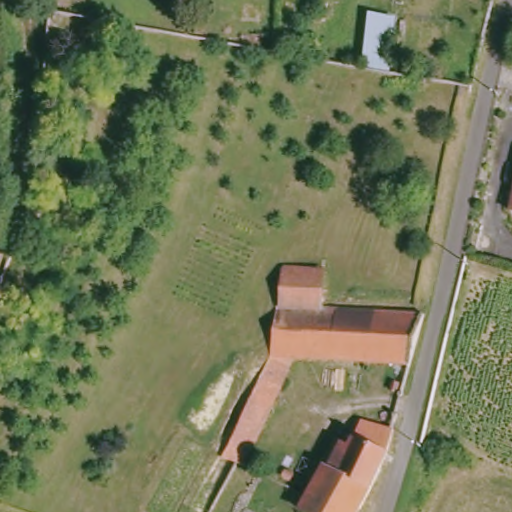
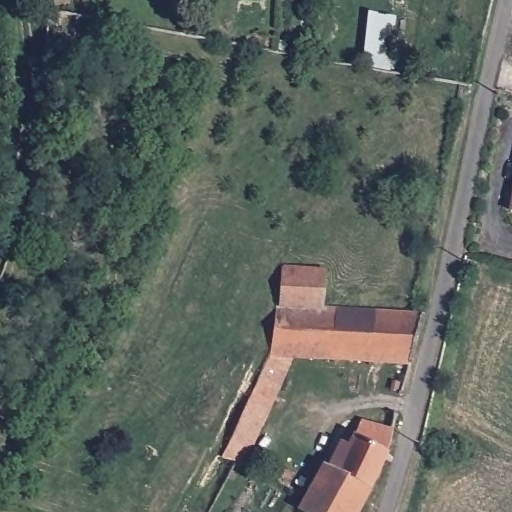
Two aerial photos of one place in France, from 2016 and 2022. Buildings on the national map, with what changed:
unchanged [(368,10),(388,14),(382,65),(364,61),(368,10)]
unchanged [(512,175),(512,207),(506,206),(512,175)]
unchanged [(411,365),(293,356),(268,412),(257,436),(243,465),(221,456),(270,355),(276,307),(281,307),(285,268),(325,272),(321,310),(425,315),(411,365)]
unchanged [(386,463),(380,460),(365,489),(353,512),(302,512),(295,508),(320,464),(325,466),(331,455),(340,458),(347,441),(350,433),(356,420),(365,424),(388,432),(382,455),(388,458),(386,463)]

